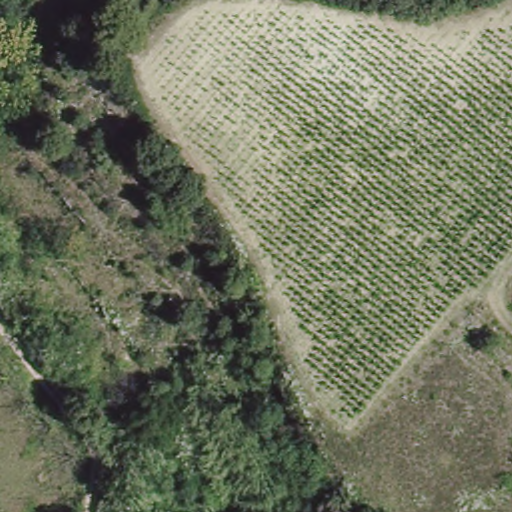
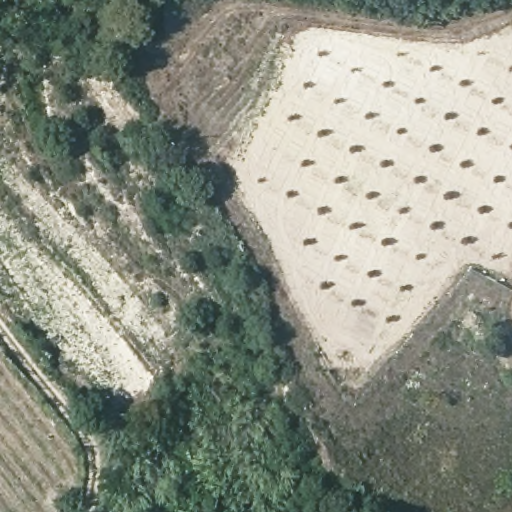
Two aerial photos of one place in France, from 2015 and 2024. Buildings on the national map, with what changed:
[]

